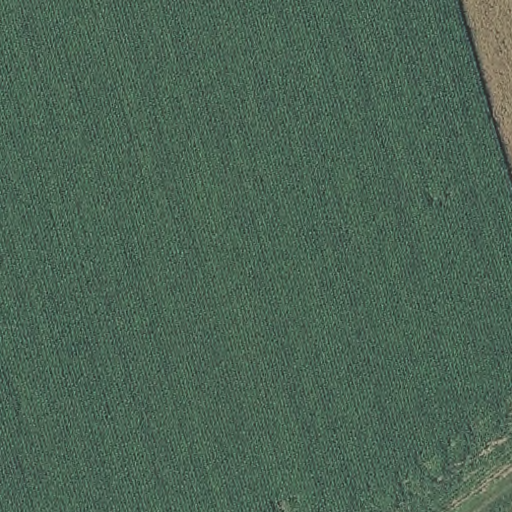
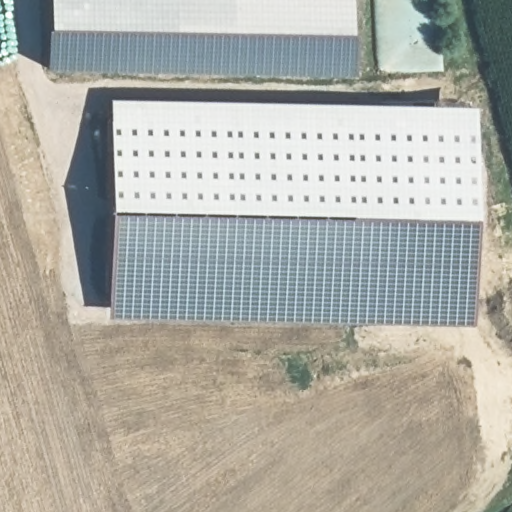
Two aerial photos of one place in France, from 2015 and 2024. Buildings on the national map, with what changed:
new [(360,71),(55,67),(55,0),(358,0),(360,71)]
new [(107,96),(471,102),(470,210),(467,245),(466,320),(305,321),(106,317),(104,264),(107,96)]

